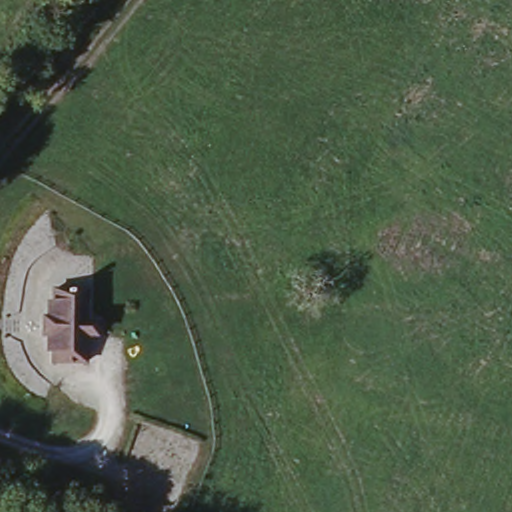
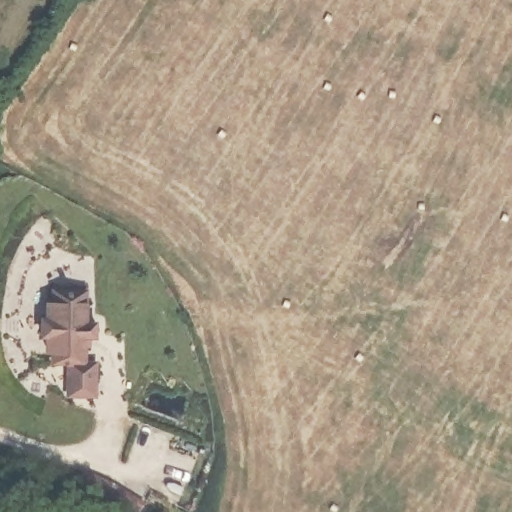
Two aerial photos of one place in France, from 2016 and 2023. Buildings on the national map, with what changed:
unchanged [(86,323),(94,322),(95,339),(84,340),(82,365),(42,363),(41,293),(83,294),(86,323)]

